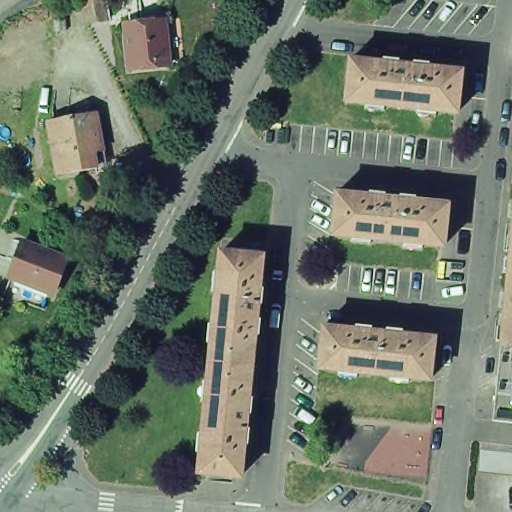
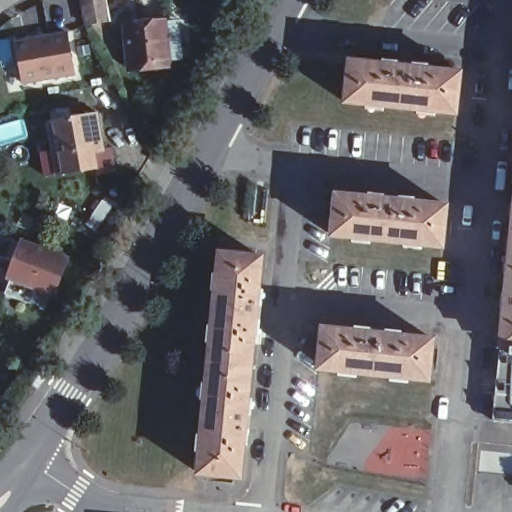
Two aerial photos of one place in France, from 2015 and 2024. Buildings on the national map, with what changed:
unchanged [(82,0),(108,0),(111,18),(93,22),(86,23),(82,0)]
demolished [(54,6),(66,5),(68,31),(55,32),(54,6)]
unchanged [(176,18),(179,59),(164,60),(164,65),(125,69),(121,30),(120,24),(137,22),(161,20),(176,18)]
new [(74,74),(24,83),(16,40),(67,31),(74,74)]
unchanged [(459,69),(456,111),(435,109),(434,114),(417,113),(418,107),(384,104),(383,109),(366,107),(366,102),(345,100),(349,59),(381,62),(381,56),(428,61),(427,66),(459,69)]
unchanged [(97,163),(59,171),(49,118),(96,109),(103,146),(105,161),(97,163)]
unchanged [(447,203),(442,244),(422,242),(421,247),(403,245),(404,240),(369,237),(369,242),(351,240),(352,235),(332,233),(336,193),(367,195),(368,190),(414,195),(414,199),(447,203)]
unchanged [(509,198),(512,199),(512,213),(508,212),(509,198)]
unchanged [(503,322),(504,303),(499,302),(501,287),(506,287),(508,269),(503,268),(504,253),(509,254),(510,247),(505,247),(506,232),(512,232),(512,228),(512,350),(510,350),(511,342),(505,342),(501,341),(501,337),(496,336),(497,322),(503,322)]
unchanged [(5,288),(11,272),(9,271),(15,256),(23,236),(25,237),(67,253),(53,288),(51,287),(45,304),(5,288)]
unchanged [(211,338),(206,338),(208,320),(213,320),(216,287),(211,286),(213,269),(218,269),(221,249),(263,253),(258,300),(262,301),(261,317),(256,316),(246,410),(251,411),(249,425),(245,425),(240,473),(198,469),(199,448),(196,448),(197,430),(201,430),(204,396),(201,396),(202,378),(207,378),(211,338)]
unchanged [(319,370),(323,326),(354,328),(354,323),(401,327),(401,333),(433,336),(429,380),(408,378),(407,383),(389,381),(389,376),(356,373),(356,378),(338,376),(338,372),(319,370)]
unchanged [(501,341),(505,342),(511,342),(510,350),(512,350),(512,418),(492,416),(501,341)]

